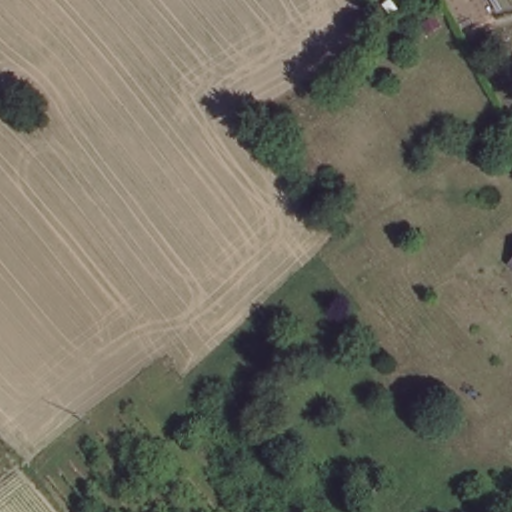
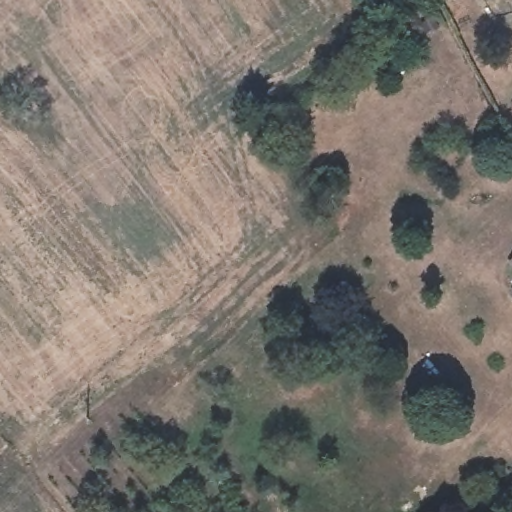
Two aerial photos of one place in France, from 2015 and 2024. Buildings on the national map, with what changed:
unchanged [(512,266),(512,268),(511,267),(512,266)]

